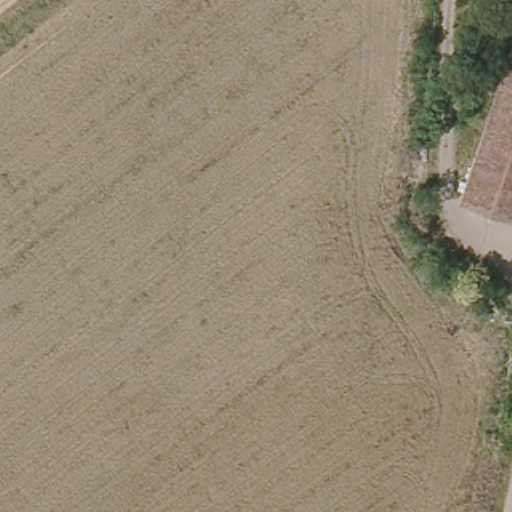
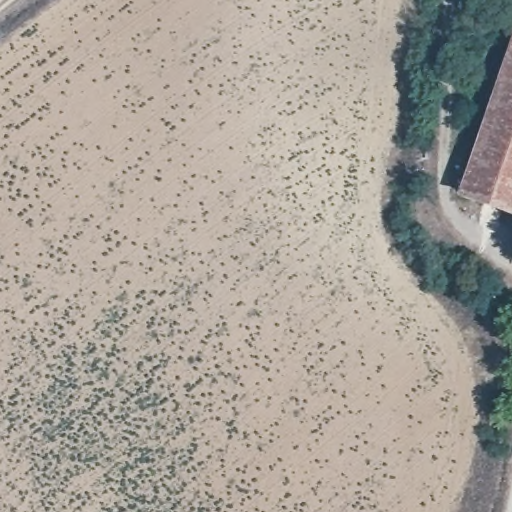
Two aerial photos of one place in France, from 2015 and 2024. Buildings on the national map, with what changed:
unchanged [(459,194),(512,54),(512,210),(459,194)]

